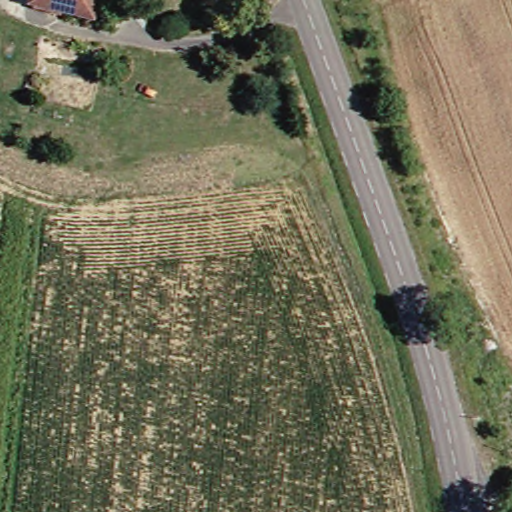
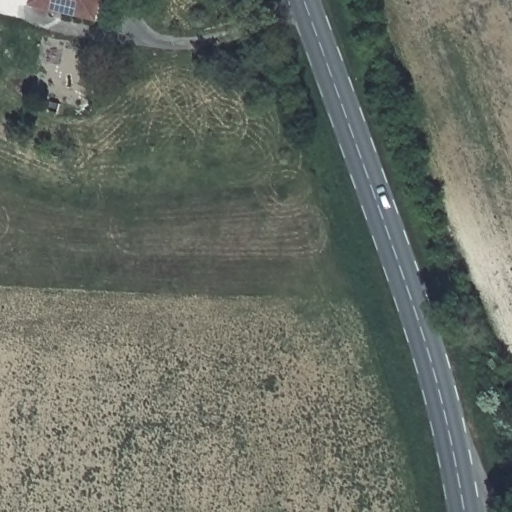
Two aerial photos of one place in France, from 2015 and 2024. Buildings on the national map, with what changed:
unchanged [(30,3),(30,0),(101,0),(98,16),(30,3)]

